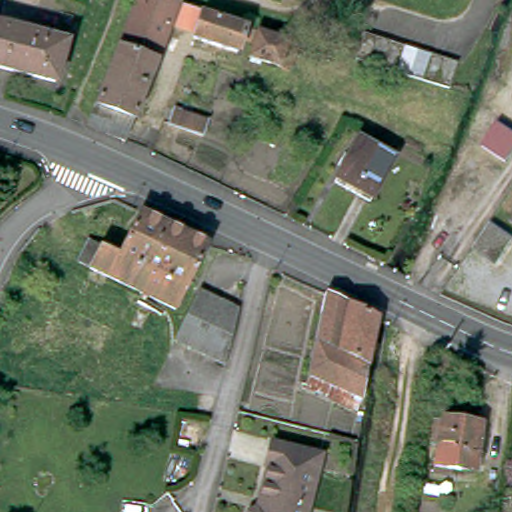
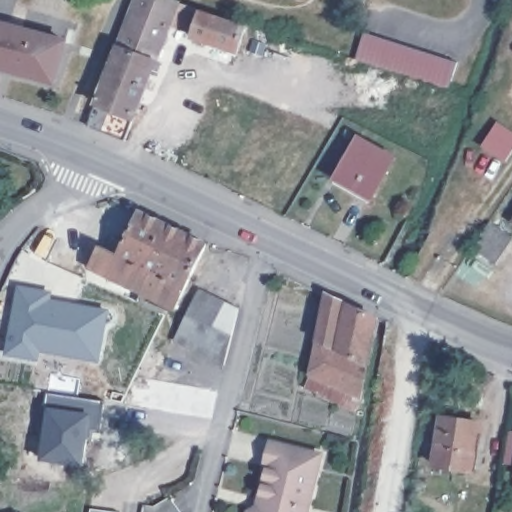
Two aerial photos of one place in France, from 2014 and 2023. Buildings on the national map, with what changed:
unchanged [(246,25),(237,52),(192,37),(192,34),(168,26),(125,139),(88,125),(136,0),(173,0),(187,5),(201,9),(200,11),(246,25)]
unchanged [(55,80),(0,65),(0,25),(65,44),(55,80)]
demolished [(258,29),(288,39),(280,64),(248,55),(258,29)]
unchanged [(449,87),(357,56),(366,33),(457,62),(449,87)]
unchanged [(512,133),(512,157),(507,164),(483,149),(498,124),(512,133)]
unchanged [(359,139),(393,158),(372,197),(337,178),(359,139)]
unchanged [(132,305),(137,297),(72,265),(83,243),(113,258),(135,215),(202,248),(170,313),(145,300),(140,309),(132,305)]
unchanged [(512,237),(512,244),(497,265),(475,250),(492,224),(512,237)]
new [(52,299),(108,309),(100,362),(40,352),(39,362),(5,356),(17,285),(53,292),(52,299)]
unchanged [(170,344),(195,294),(234,313),(220,366),(170,344)]
unchanged [(372,323),(355,402),(303,378),(320,298),(368,320),(372,323)]
new [(85,467),(40,460),(45,424),(42,423),(47,393),(103,401),(100,433),(90,431),(85,467)]
unchanged [(473,474),(433,467),(442,419),(480,426),(473,474)]
unchanged [(242,511),(252,506),(257,507),(260,498),(254,496),(265,463),(261,462),(267,442),(288,447),(275,512),(242,512),(242,511)]
unchanged [(317,455),(301,512),(275,512),(288,447),(317,455)]

